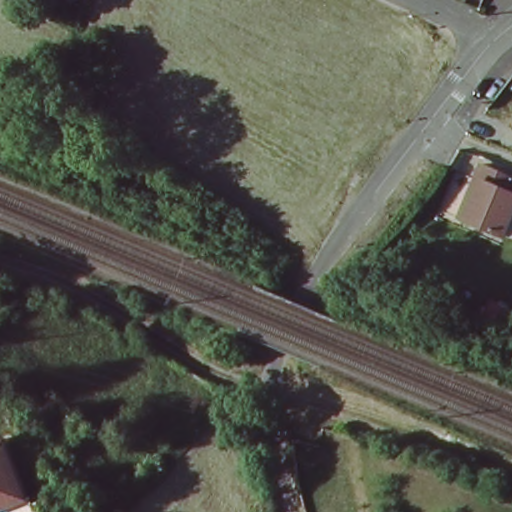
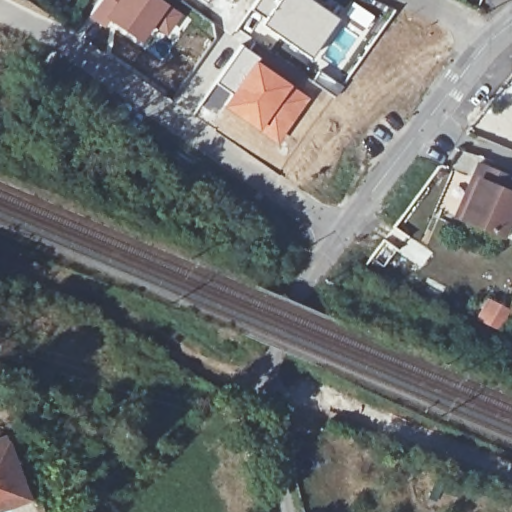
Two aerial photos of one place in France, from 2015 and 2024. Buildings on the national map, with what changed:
new [(91,15),(101,0),(153,0),(175,15),(164,31),(150,22),(138,38),(107,16),(102,22),(91,15)]
new [(199,0),(208,0),(206,3),(199,0)]
new [(260,14),(271,0),(310,0),(335,18),(306,56),(257,23),(262,15),(260,14)]
new [(275,144),(220,107),(230,91),(215,80),(240,45),(255,56),(254,58),(309,97),(275,144)]
unchanged [(512,180),(507,190),(512,192),(512,206),(500,234),(461,217),(477,180),(472,178),(479,162),(512,176),(512,180)]
unchanged [(10,437),(31,497),(0,509),(0,441),(10,437)]

